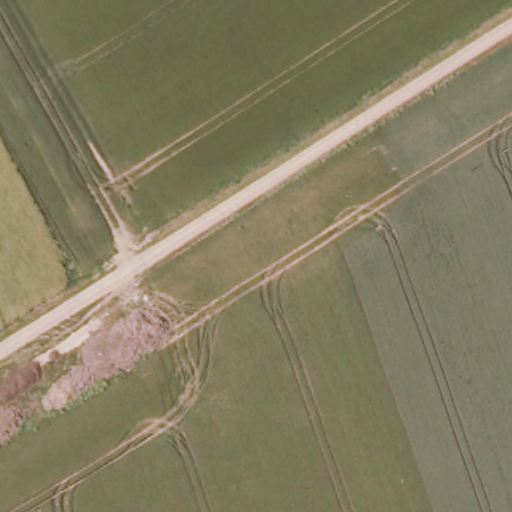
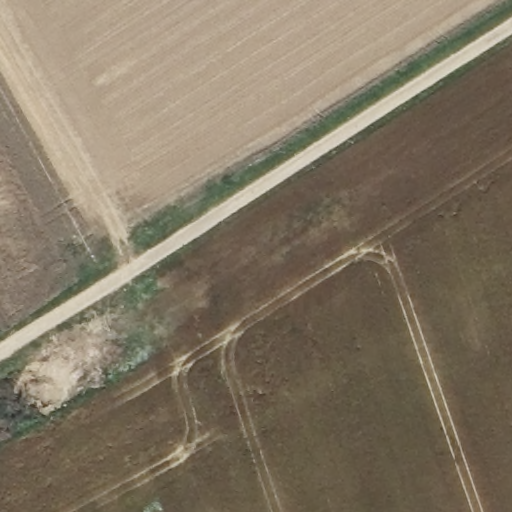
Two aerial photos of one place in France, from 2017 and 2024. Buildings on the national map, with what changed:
[]

